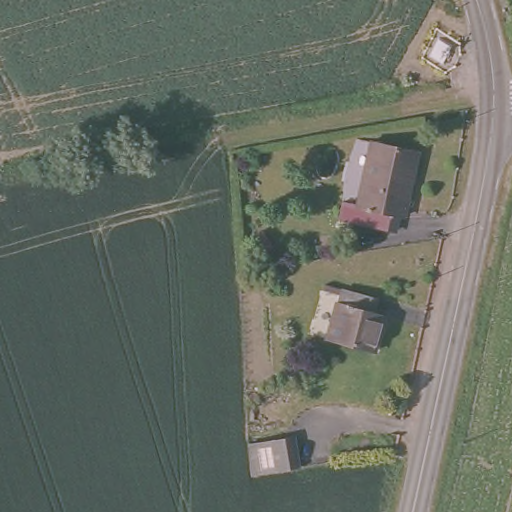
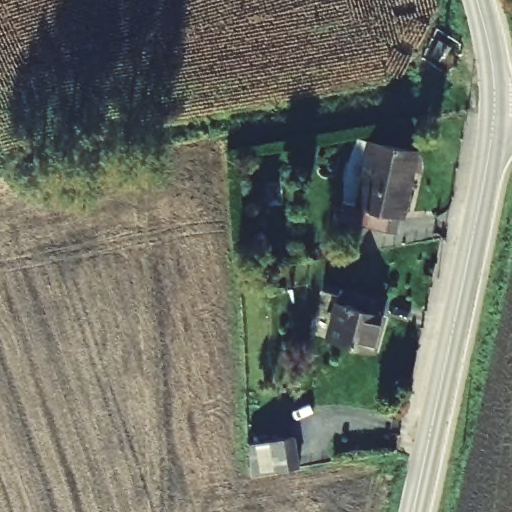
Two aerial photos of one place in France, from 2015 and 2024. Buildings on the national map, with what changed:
unchanged [(411,149),(409,174),(412,174),(404,211),(400,210),(397,227),(356,219),(371,142),(411,149)]
unchanged [(372,306),(369,320),(379,322),(373,358),(326,347),(336,298),(372,306)]
unchanged [(286,472),(248,476),(243,444),(284,441),(286,472)]

